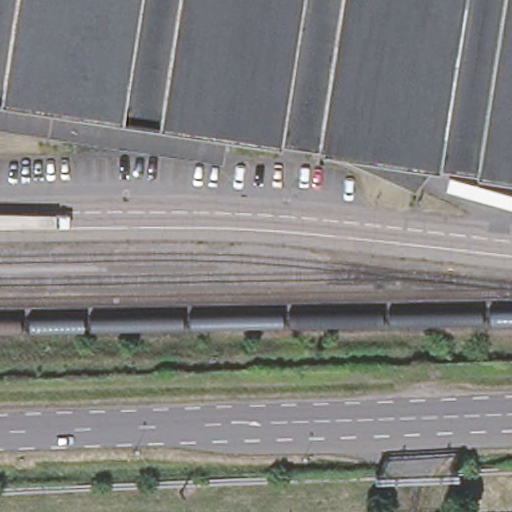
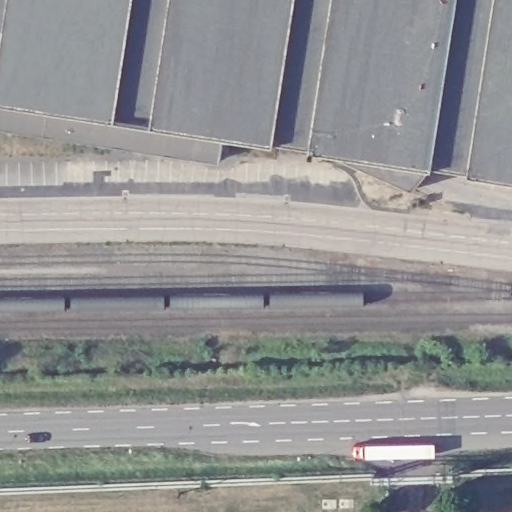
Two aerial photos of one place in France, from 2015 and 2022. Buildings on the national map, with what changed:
unchanged [(0,109),(0,0),(144,0),(123,126),(0,109)]
unchanged [(413,167),(211,139),(123,126),(144,0),(512,0),(512,181),(413,167)]
unchanged [(0,136),(0,109),(123,126),(211,139),(208,165),(0,136)]

